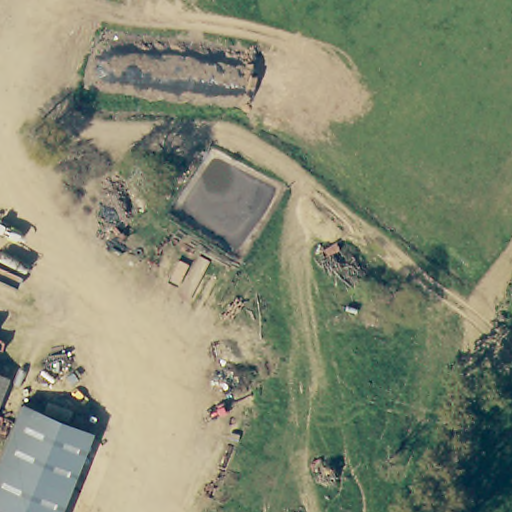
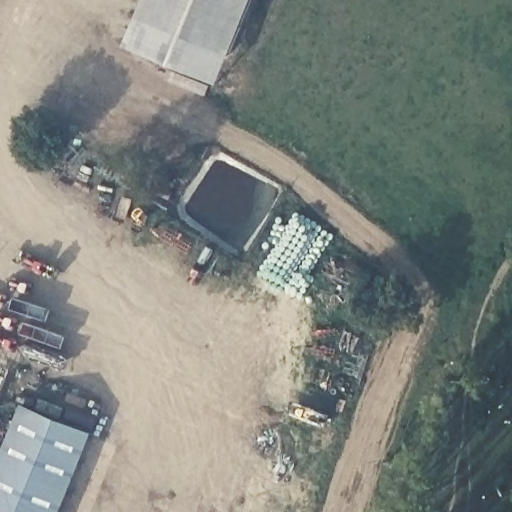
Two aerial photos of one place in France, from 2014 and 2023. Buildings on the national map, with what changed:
new [(230,54),(217,82),(125,49),(137,16),(144,0),(252,0),(230,54)]
unchanged [(0,408),(0,377),(11,382),(0,408)]
unchanged [(0,512),(0,465),(25,405),(95,433),(62,512),(0,512)]

